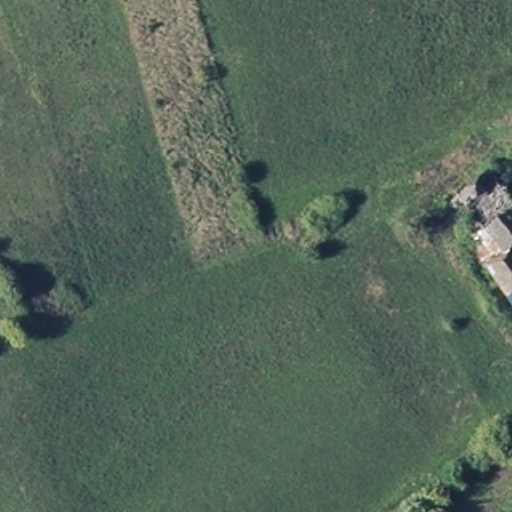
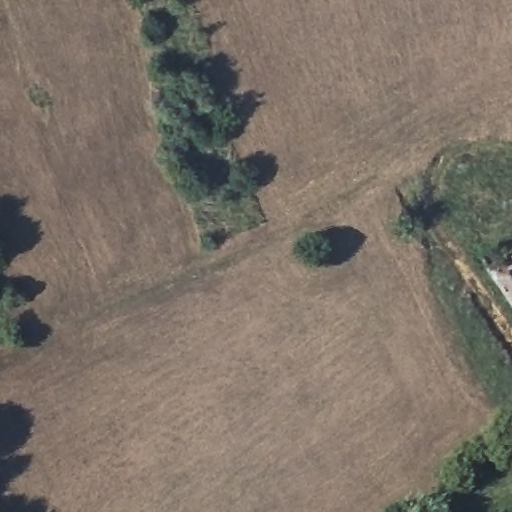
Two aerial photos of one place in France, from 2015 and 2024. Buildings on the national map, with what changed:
unchanged [(512,192),(512,298),(448,205),(498,171),(512,192)]

